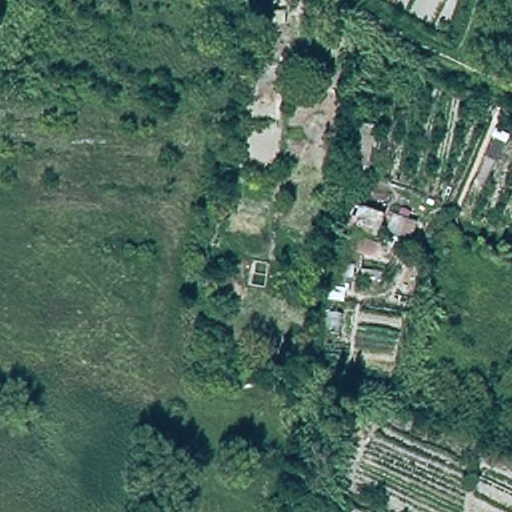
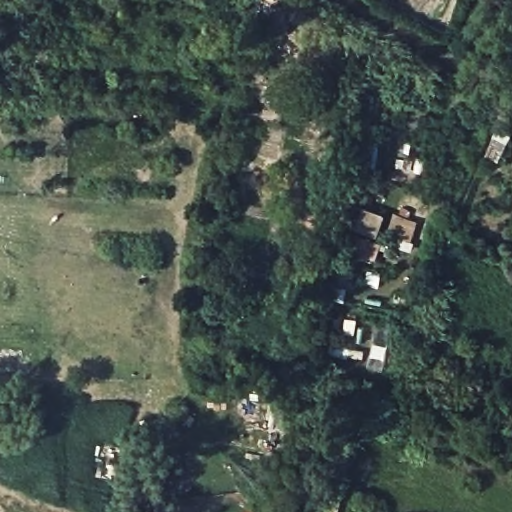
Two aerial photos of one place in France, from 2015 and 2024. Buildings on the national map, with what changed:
unchanged [(278,6),(257,1),(257,0),(280,0),(278,6)]
unchanged [(508,30),(502,55),(485,50),(490,26),(508,30)]
unchanged [(375,259),(344,251),(341,273),(352,277),(342,324),(326,325),(331,251),(341,229),(380,246),(375,259)]
unchanged [(345,453),(328,452),(328,425),(348,425),(345,453)]

